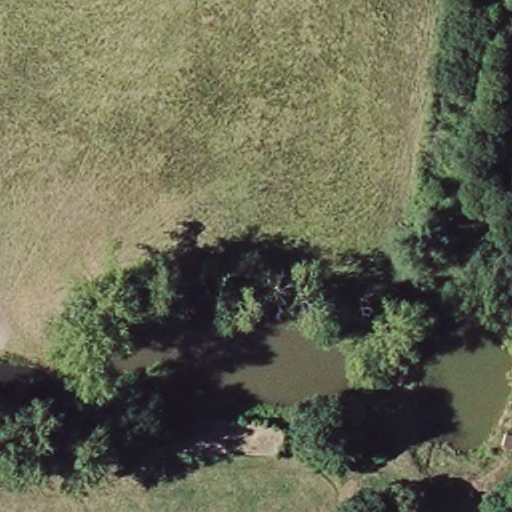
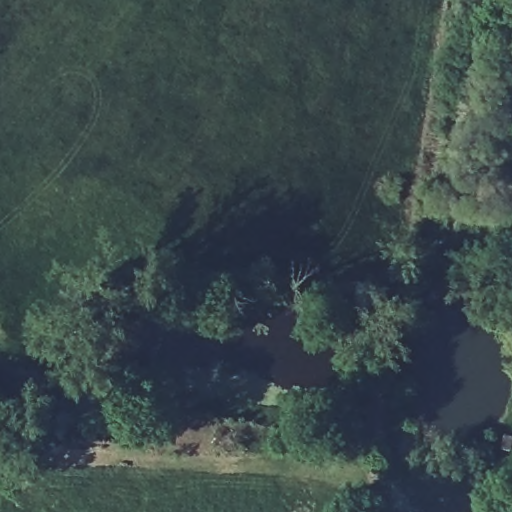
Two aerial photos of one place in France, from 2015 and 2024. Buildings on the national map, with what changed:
[]

